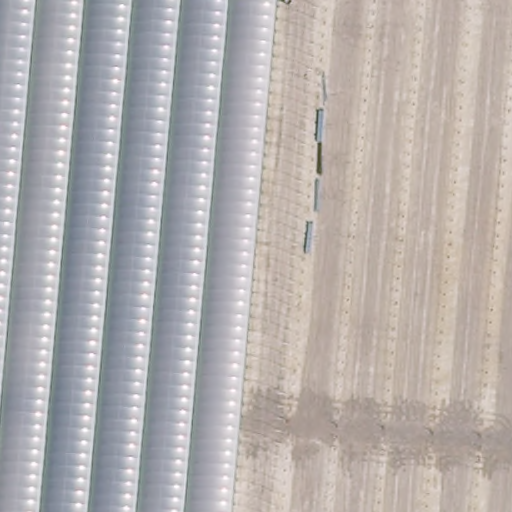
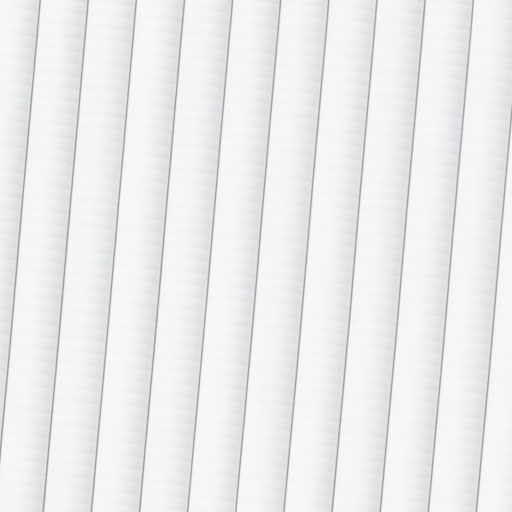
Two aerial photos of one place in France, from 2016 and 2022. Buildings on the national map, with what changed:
unchanged [(277,0),(233,512),(0,512),(0,0),(277,0)]
new [(277,0),(512,0),(512,512),(233,512),(277,0)]

